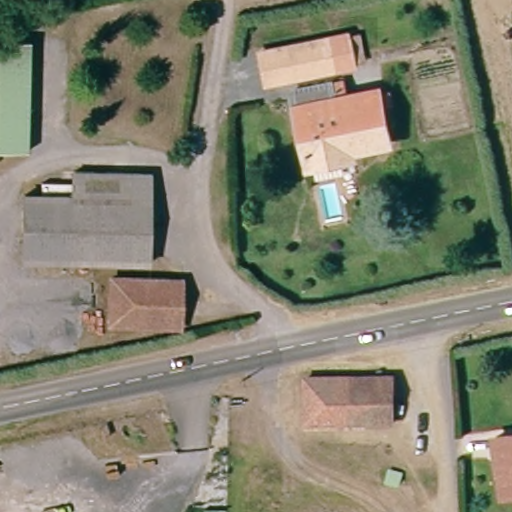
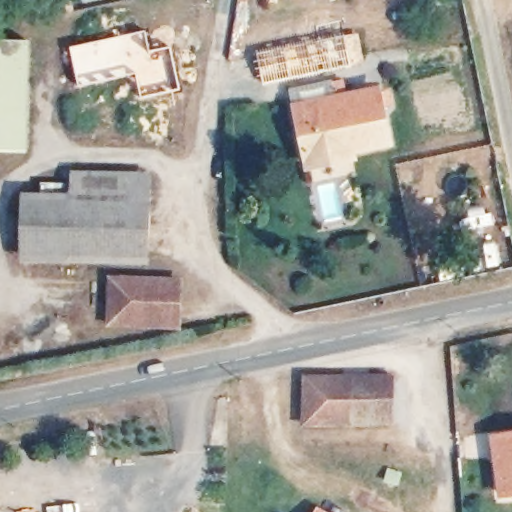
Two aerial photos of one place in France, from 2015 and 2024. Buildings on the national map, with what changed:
new [(82,0),(102,0),(82,4),(82,0)]
new [(145,31),(150,51),(170,47),(179,89),(141,98),(135,74),(79,87),(70,48),(145,31)]
unchanged [(242,53),(348,34),(360,32),(366,60),(354,62),(247,82),(242,53)]
unchanged [(26,42),(19,149),(0,148),(0,40),(26,42)]
unchanged [(345,161),(310,165),(299,105),(377,92),(388,143),(352,148),(355,160),(345,161)]
unchanged [(66,195),(67,174),(150,172),(146,266),(21,261),(22,195),(66,195)]
unchanged [(106,320),(106,275),(175,277),(175,320),(106,320)]
unchanged [(318,375),(382,376),(383,420),(300,423),(300,379),(318,375)]
unchanged [(495,437),(512,433),(512,498),(507,499),(495,437)]
new [(316,506),(328,512),(313,512),(316,506)]

